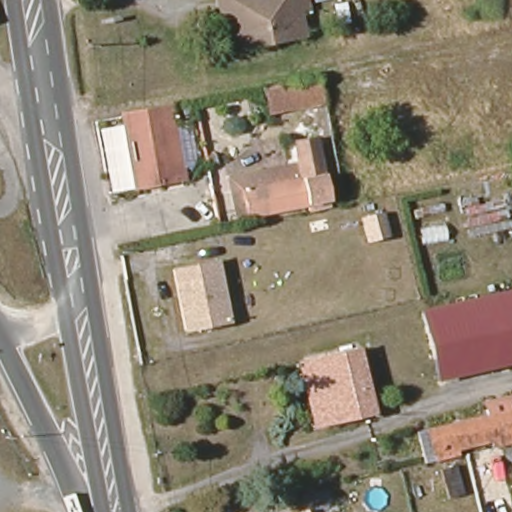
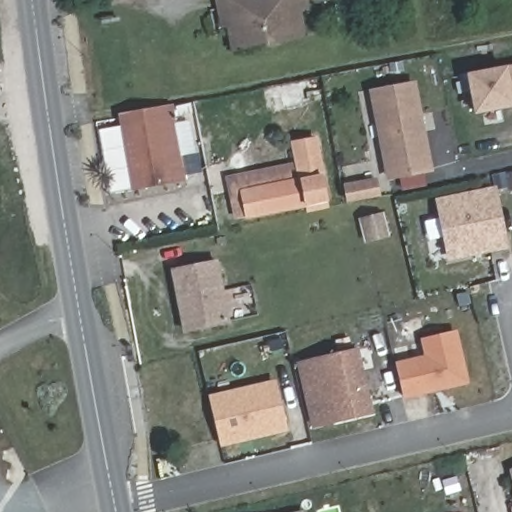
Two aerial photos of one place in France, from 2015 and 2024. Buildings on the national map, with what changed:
unchanged [(232,47),(225,6),(250,1),(251,4),(270,0),(303,0),(305,10),(296,12),(300,35),(232,47)]
new [(467,72),(508,65),(512,64),(512,107),(473,114),(467,72)]
new [(434,170),(386,180),(368,89),(417,79),(434,170)]
unchanged [(303,107),(273,112),(271,95),(300,91),(303,107)]
unchanged [(170,105),(182,182),(132,192),(120,115),(169,105),(170,105)]
unchanged [(325,202),(305,206),(304,200),(245,213),(240,187),(297,175),(291,138),(314,134),(325,202)]
new [(376,177),(380,196),(346,203),(342,184),(376,177)]
new [(435,199),(496,187),(509,248),(448,261),(435,199)]
new [(390,237),(365,244),(358,219),(383,212),(390,237)]
unchanged [(231,322),(187,331),(176,270),(220,261),(231,322)]
demolished [(507,293),(512,314),(512,349),(430,368),(418,314),(507,293)]
new [(395,361),(423,355),(420,339),(458,330),(468,383),(403,399),(395,361)]
unchanged [(368,413),(319,425),(305,363),(355,351),(368,413)]
new [(220,446),(208,395),(275,378),(288,431),(220,446)]
demolished [(482,440),(412,457),(406,435),(479,416),(476,404),(512,395),(512,439),(484,446),(482,440)]

